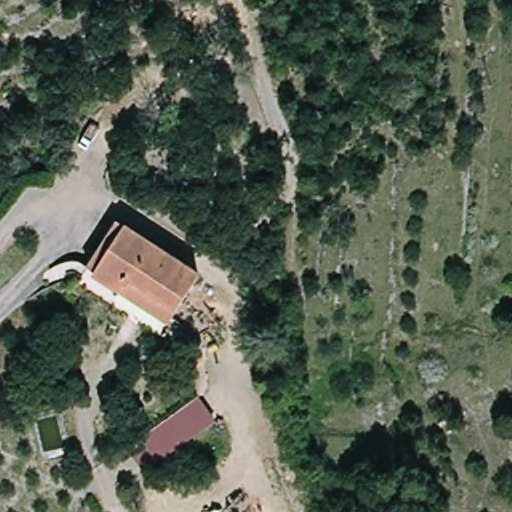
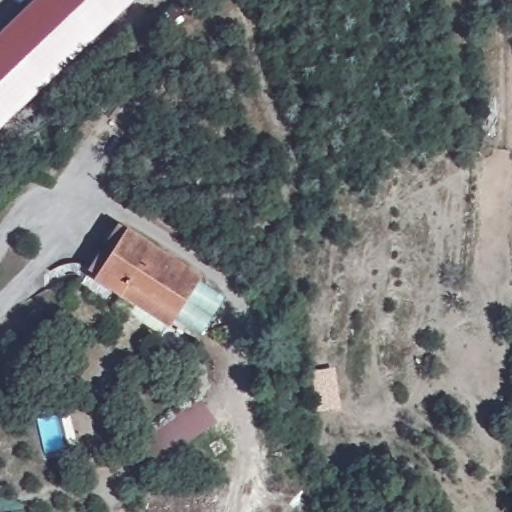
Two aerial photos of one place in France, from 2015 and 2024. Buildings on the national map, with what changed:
new [(34,0),(135,0),(0,129),(0,33),(34,0)]
unchanged [(169,322),(121,288),(117,294),(93,276),(126,230),(198,282),(169,322)]
unchanged [(217,421),(156,460),(141,439),(199,397),(217,421)]

